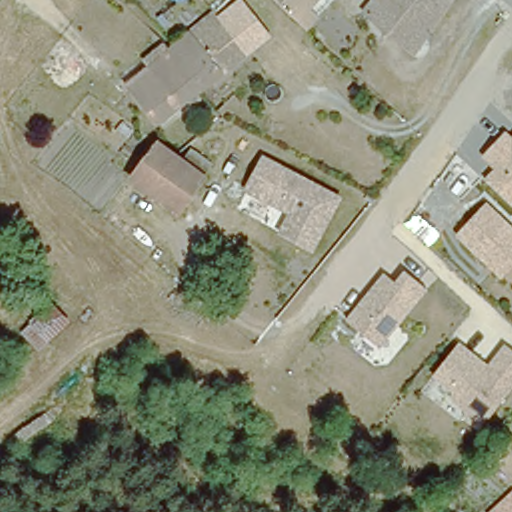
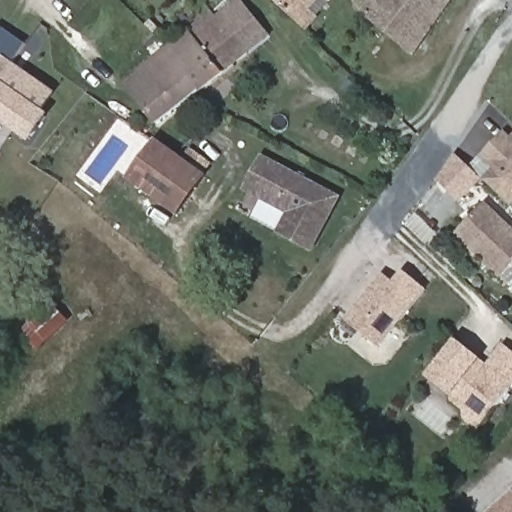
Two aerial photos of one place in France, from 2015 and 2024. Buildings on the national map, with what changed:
unchanged [(243,0),(271,34),(244,47),(218,17),(239,0),(243,0)]
unchanged [(296,14),(294,13),(279,0),(312,0),(300,17),(296,14)]
unchanged [(373,19),(358,5),(363,0),(446,0),(408,49),(373,19)]
unchanged [(167,48),(185,34),(213,11),(218,17),(244,47),(194,88),(190,82),(164,50),(167,48)]
unchanged [(176,25),(185,34),(167,48),(164,50),(122,86),(113,75),(155,41),(176,25)]
new [(13,63),(56,93),(44,111),(51,116),(31,145),(0,124),(0,28),(25,45),(13,63)]
unchanged [(137,103),(122,86),(164,50),(190,82),(194,88),(152,121),(137,103)]
unchanged [(486,178),(494,169),(482,158),(507,131),(512,136),(512,206),(486,178)]
unchanged [(202,177),(175,210),(125,174),(148,144),(151,140),(202,177)]
unchanged [(342,196),(313,252),(278,233),(288,214),(244,192),(263,154),(342,196)]
unchanged [(502,279),(455,235),(487,202),(512,226),(512,269),(502,279)]
unchanged [(395,282),(404,270),(428,290),(380,348),(345,319),(383,273),(395,282)]
unchanged [(505,344),(512,350),(512,389),(478,431),(465,422),(466,411),(451,401),(452,390),(433,376),(460,342),(488,364),(505,344)]
unchanged [(512,491),(512,512),(488,512),(512,491)]

